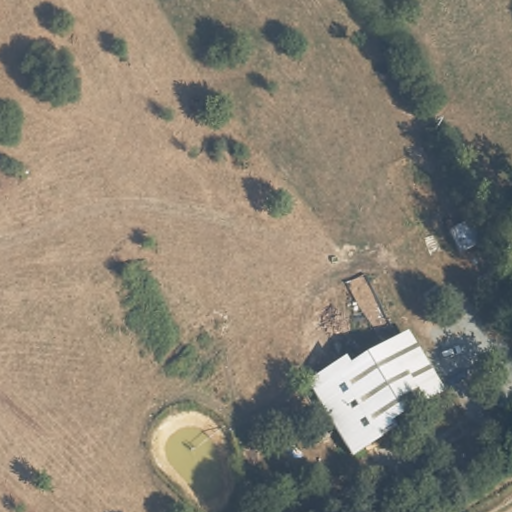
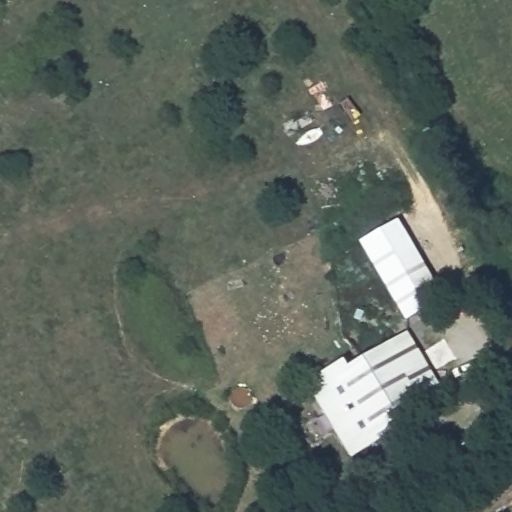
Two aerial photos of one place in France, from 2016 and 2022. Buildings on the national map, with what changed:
new [(398,220),(445,301),(406,323),(360,242),(398,220)]
unchanged [(343,360),(347,368),(406,331),(406,332),(444,395),(387,426),(392,433),(347,459),(303,385),(343,360)]
unchanged [(427,467),(458,447),(459,450),(477,479),(468,485),(436,506),(435,505),(421,481),(430,475),(426,468),(427,467)]

